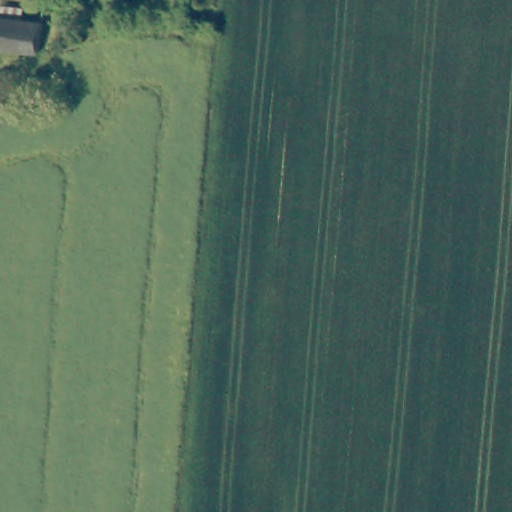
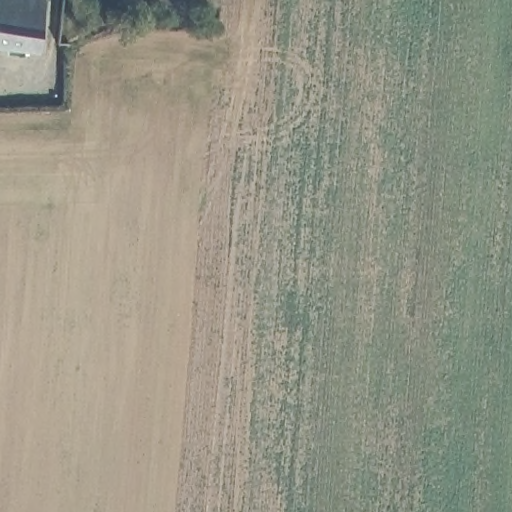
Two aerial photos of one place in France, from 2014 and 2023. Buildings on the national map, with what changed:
new [(0,51),(0,0),(43,0),(39,55),(0,51)]
demolished [(32,0),(33,4),(33,8),(31,13),(26,16),(20,16),(15,14),(12,9),(12,5),(15,0),(32,0)]
demolished [(35,57),(0,55),(0,26),(12,26),(37,29),(35,57)]

